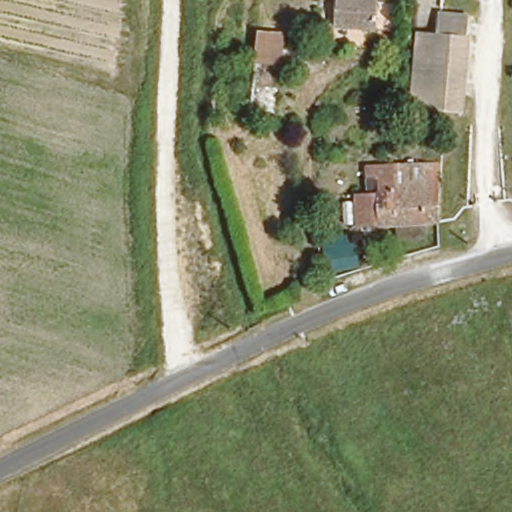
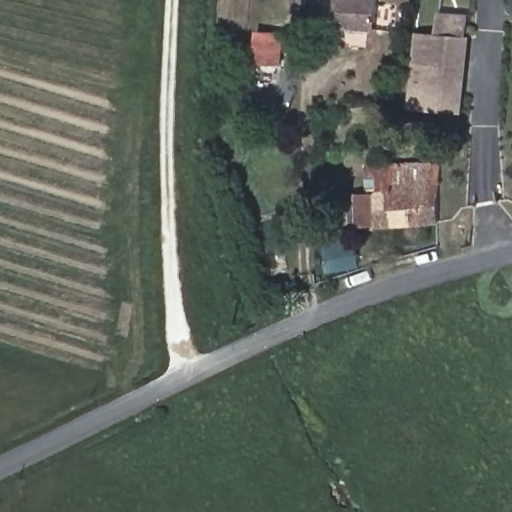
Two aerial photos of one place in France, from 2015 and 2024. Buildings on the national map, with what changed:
unchanged [(381,27),(337,25),(338,0),(381,0),(381,27)]
unchanged [(252,28),(295,30),(292,81),(249,78),(252,28)]
unchanged [(410,101),(415,68),(420,35),(450,37),(445,81),(442,114),(409,110),(410,101)]
unchanged [(445,81),(450,37),(471,40),(466,84),(462,116),(442,114),(445,81)]
unchanged [(380,166),(445,162),(443,220),(383,225),(380,166)]
unchanged [(352,167),(380,166),(383,225),(355,227),(352,167)]

